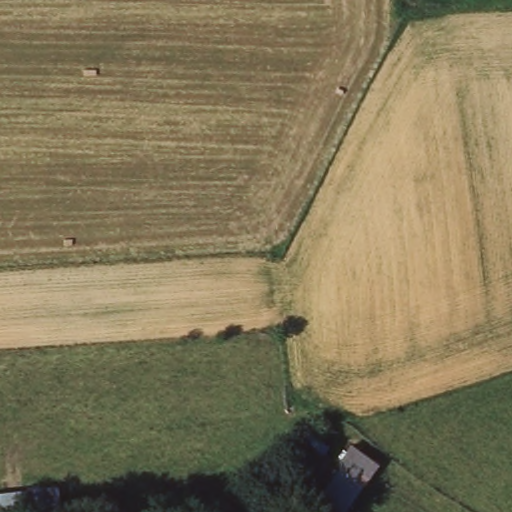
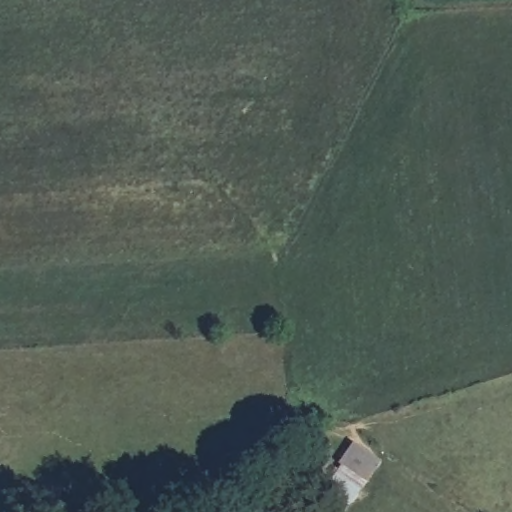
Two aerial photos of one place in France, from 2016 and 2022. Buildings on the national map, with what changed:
unchanged [(365,477),(337,463),(348,443),(375,456),(372,462),(365,477)]
unchanged [(318,512),(333,484),(336,479),(338,475),(361,487),(357,494),(354,500),(348,512),(318,512)]
unchanged [(61,512),(31,512),(30,494),(59,492),(61,512)]

